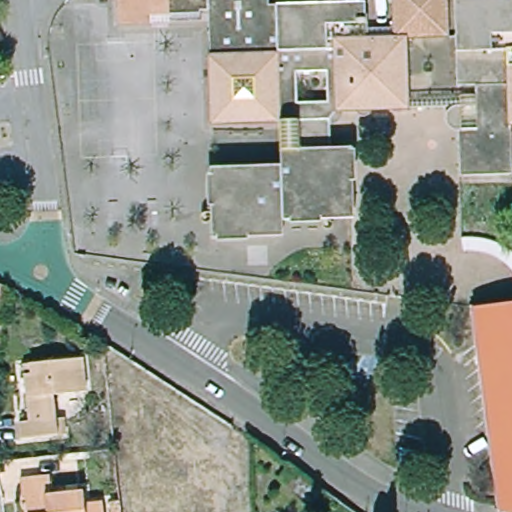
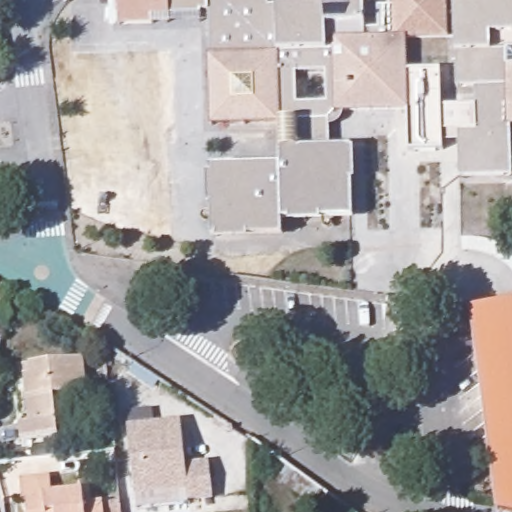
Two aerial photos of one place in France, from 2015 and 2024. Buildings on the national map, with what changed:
unchanged [(325,116),(315,122),(317,152),(336,152),(340,221),(272,222),(272,238),(204,240),(202,172),(270,170),(268,125),(201,129),(195,15),(185,15),(185,18),(186,26),(138,27),(106,27),(105,0),(256,0),(257,7),(316,6),(318,0),(342,0),(344,5),(362,5),(363,30),(394,28),(392,0),(445,0),(447,36),(403,37),(406,96),(406,114),(325,116)]
unchanged [(406,96),(457,95),(479,94),(479,82),(457,82),(453,0),(512,0),(512,179),(464,180),(462,134),(462,113),(406,114),(406,96)]
unchanged [(512,302),(512,512),(498,512),(472,307),(512,302)]
unchanged [(76,392),(44,396),(46,419),(53,418),(56,435),(12,440),(10,423),(20,421),(13,366),(72,359),(76,392)]
new [(213,500),(189,501),(187,490),(134,496),(129,427),(181,421),(186,466),(210,462),(213,500)]
unchanged [(325,488),(313,506),(276,480),(289,463),(325,488)]
unchanged [(84,492),(86,503),(101,502),(102,512),(32,512),(30,499),(26,500),(24,482),(53,477),(56,495),(84,492)]

